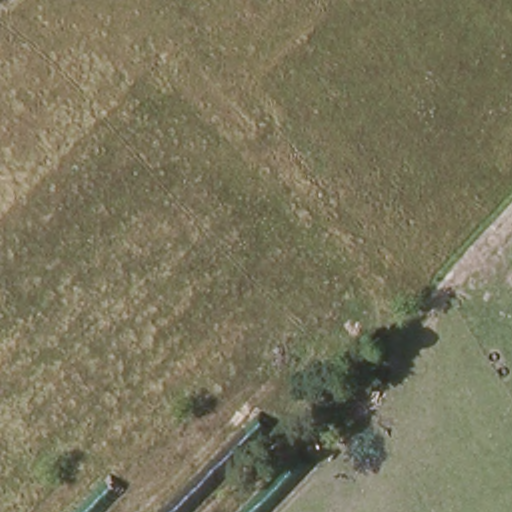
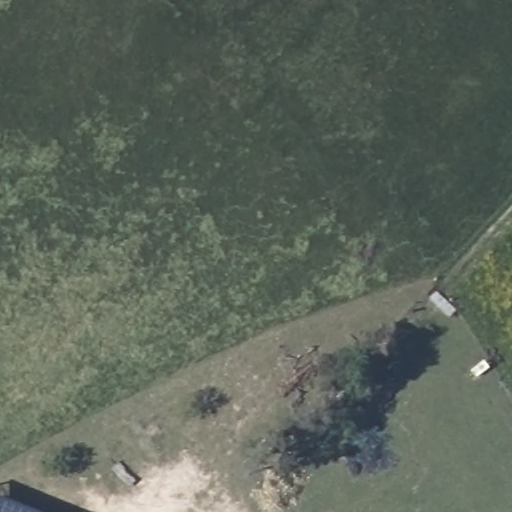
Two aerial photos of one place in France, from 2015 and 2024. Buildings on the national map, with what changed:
new [(44,512),(0,512),(0,494),(44,512)]

